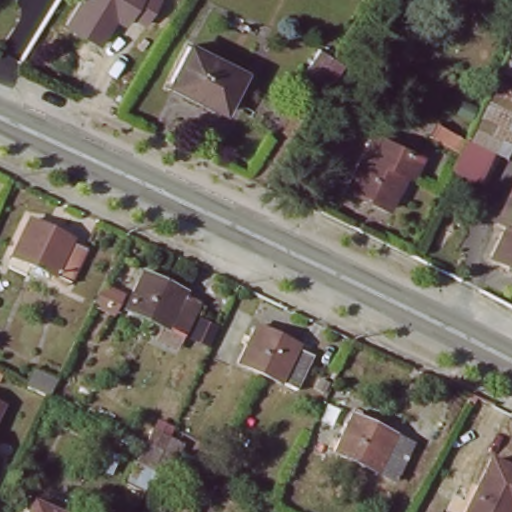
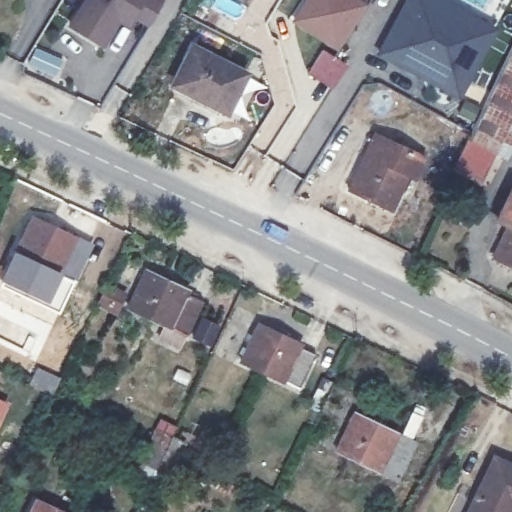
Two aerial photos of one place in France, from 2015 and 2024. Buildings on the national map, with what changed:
unchanged [(135,20),(129,29),(119,25),(106,47),(71,27),(86,0),(164,0),(150,27),(135,20)]
new [(314,0),(355,0),(367,7),(340,50),(295,22),(308,2),(311,5),(314,0)]
new [(459,100),(374,55),(405,0),(444,0),(497,27),(459,100)]
unchanged [(242,77),(220,115),(200,104),(201,100),(169,81),(189,46),(242,77)]
unchanged [(489,142),(472,134),(512,47),(512,141),(507,152),(489,142)]
unchanged [(336,84),(324,76),(310,69),(320,50),(335,59),(347,65),(336,84)]
demolished [(465,148),(436,134),(443,120),(471,135),(465,148)]
unchanged [(420,155),(409,175),(402,171),(385,207),(341,185),(359,147),(364,149),(372,131),(420,155)]
unchanged [(505,155),(488,191),(455,175),(474,139),(505,155)]
unchanged [(512,192),(512,216),(503,211),(512,192)]
unchanged [(76,237),(75,240),(89,247),(73,282),(15,255),(33,216),(76,237)]
unchanged [(512,218),(512,263),(494,255),(512,218)]
unchanged [(187,286),(186,290),(202,297),(186,332),(126,303),(143,265),(187,286)]
unchanged [(300,343),(298,347),(315,355),(299,390),(239,361),(257,323),(300,343)]
unchanged [(58,400),(43,393),(51,375),(67,381),(58,400)]
unchanged [(2,408),(0,411),(0,407),(2,408)]
unchanged [(416,443),(397,481),(335,451),(353,413),(416,443)]
unchanged [(169,495),(155,487),(161,475),(145,466),(154,445),(160,435),(176,442),(171,453),(185,460),(169,495)]
unchanged [(493,452),(512,460),(512,482),(484,471),(493,452)]
unchanged [(512,482),(512,512),(463,512),(484,471),(512,482)]
unchanged [(53,512),(31,512),(35,503),(53,512)]

